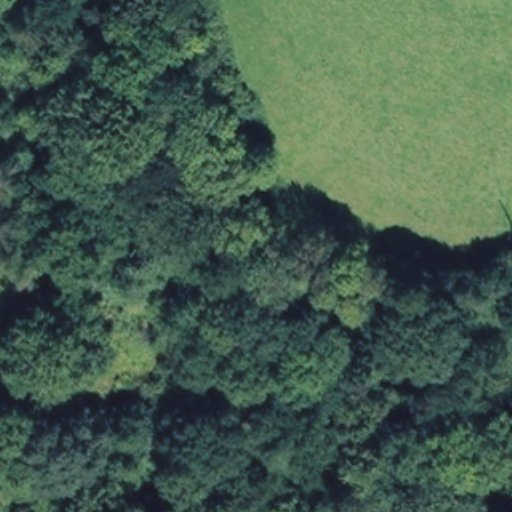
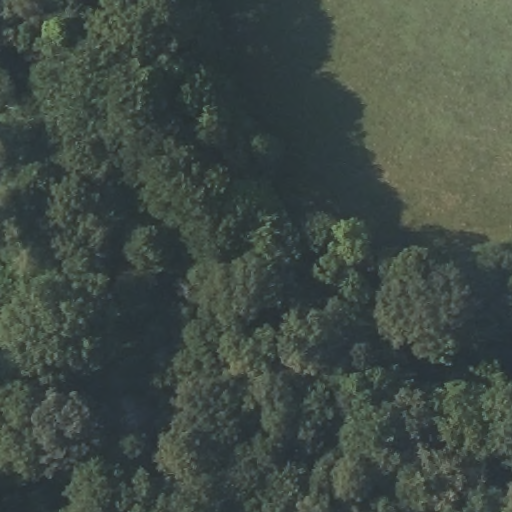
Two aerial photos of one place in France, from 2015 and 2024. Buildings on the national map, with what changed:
[]

